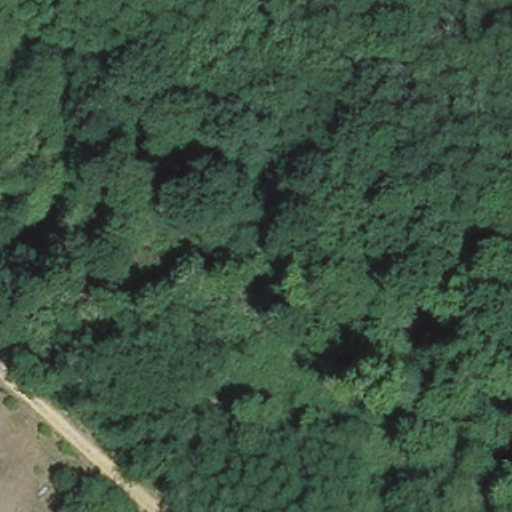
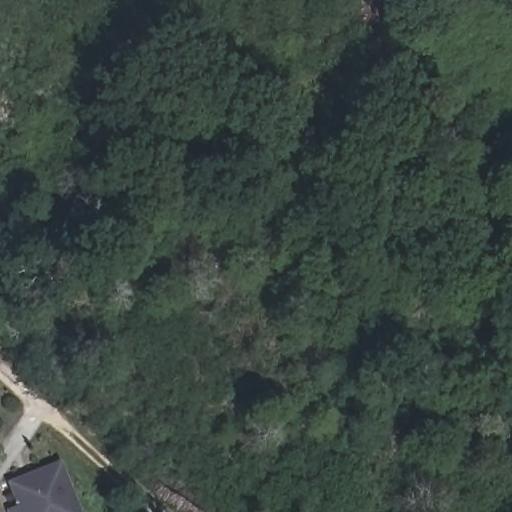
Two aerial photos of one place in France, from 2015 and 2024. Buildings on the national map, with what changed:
new [(7,480),(61,459),(81,512),(9,512),(7,509),(17,505),(7,480)]

